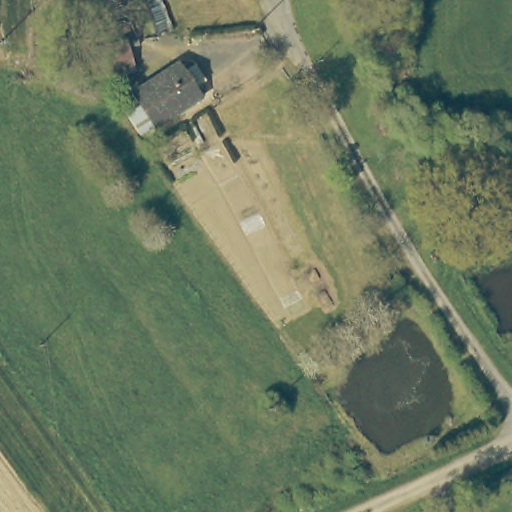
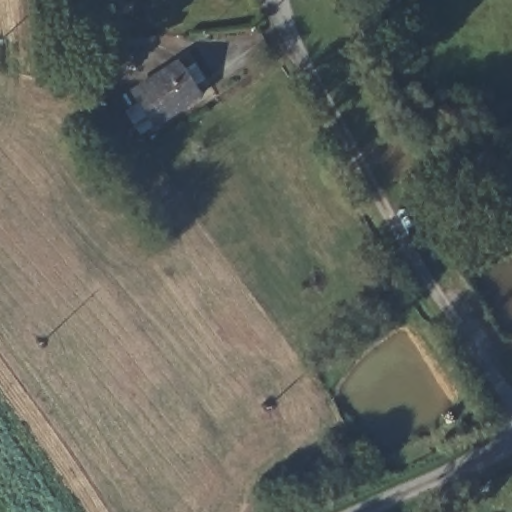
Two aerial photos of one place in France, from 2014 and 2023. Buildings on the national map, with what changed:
unchanged [(95,0),(103,0),(97,3),(95,0)]
unchanged [(141,140),(124,116),(136,108),(129,96),(177,64),(202,100),(141,140)]

